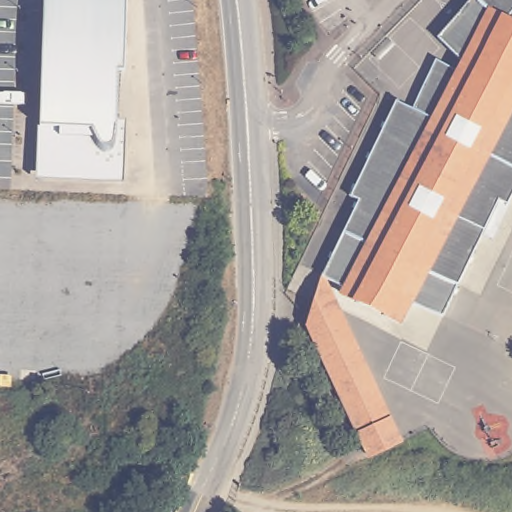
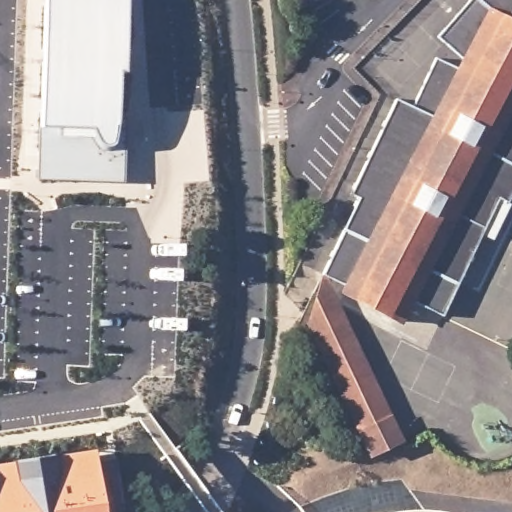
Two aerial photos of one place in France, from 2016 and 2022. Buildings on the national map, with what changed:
unchanged [(43,134),(40,134),(45,0),(128,0),(125,76),(119,76),(117,125),(117,147),(112,159),(111,162),(112,166),(116,179),(42,176),(43,134)]
unchanged [(350,196),(398,97),(412,104),(435,57),(460,68),(466,58),(437,34),(466,0),(512,0),(512,193),(507,202),(500,197),(445,312),(414,297),(403,318),(343,292),(347,281),(325,271),(357,202),(350,196)]
unchanged [(400,437),(369,453),(310,325),(325,271),(400,437)]
new [(96,460),(115,457),(122,512),(0,512),(0,462),(92,448),(96,460)]
new [(426,509),(448,512),(385,512),(401,510),(426,509)]

